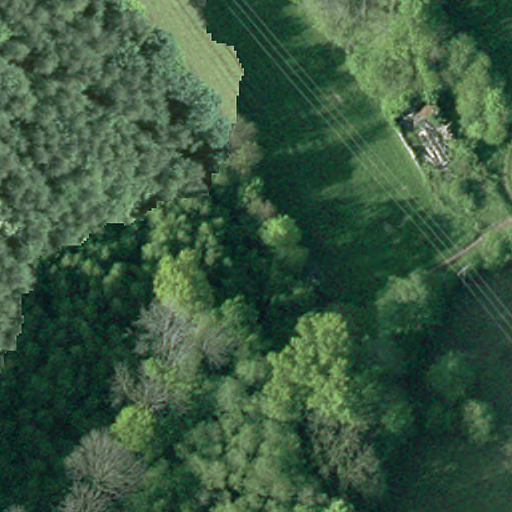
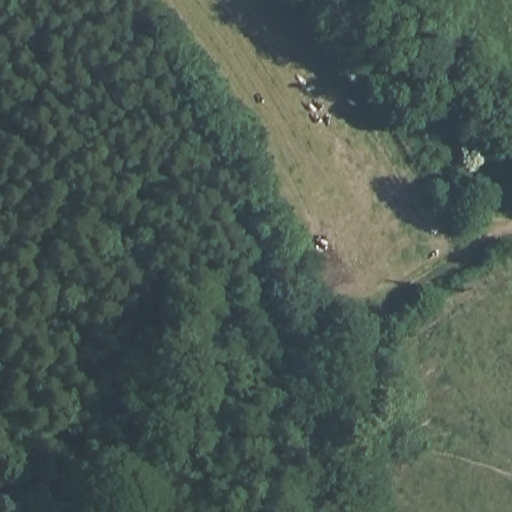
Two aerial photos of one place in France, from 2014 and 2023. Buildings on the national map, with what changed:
unchanged [(431,202),(384,140),(421,115),(467,176),(431,202)]

